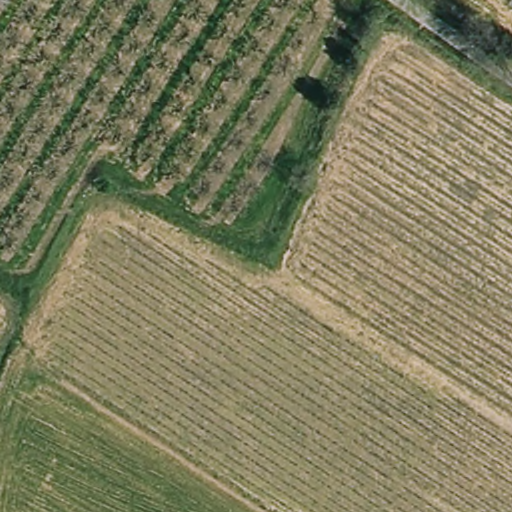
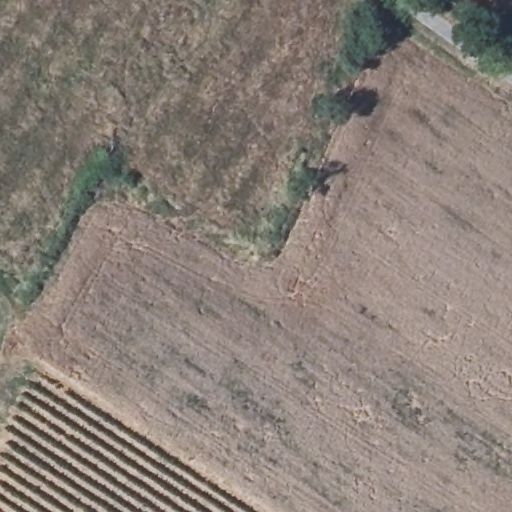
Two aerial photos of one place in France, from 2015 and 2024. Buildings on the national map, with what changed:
[]

